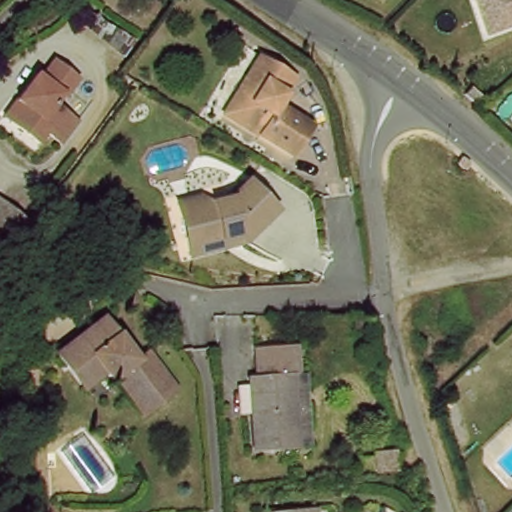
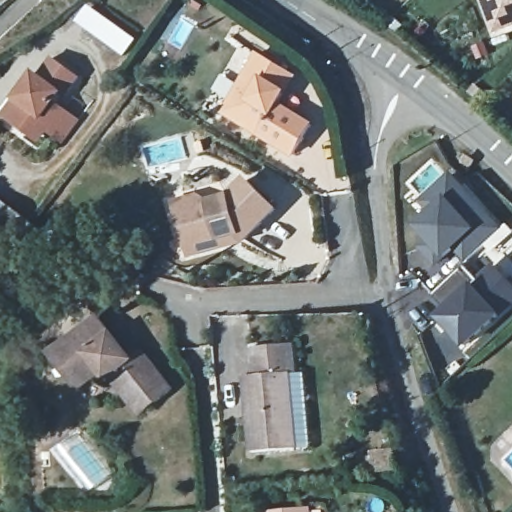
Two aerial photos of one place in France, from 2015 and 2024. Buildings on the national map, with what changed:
unchanged [(494,37),(481,2),(480,0),(512,0),(512,30),(494,37)]
unchanged [(128,32),(146,44),(136,60),(118,45),(91,25),(99,14),(128,32)]
unchanged [(261,59),(296,81),(279,109),(313,130),(294,160),(259,138),(261,135),(248,126),(246,129),(224,116),(261,59)]
unchanged [(14,110),(19,104),(28,93),(35,84),(39,88),(53,70),(77,89),(79,90),(64,109),(63,107),(60,106),(54,114),(56,116),(77,133),(59,155),(44,144),(36,154),(29,149),(8,132),(1,127),(14,110)]
unchanged [(474,91),(487,102),(479,109),(467,98),(474,91)]
new [(468,345),(444,317),(450,312),(437,296),(471,263),(458,248),(439,266),(428,253),(438,244),(422,227),(437,213),(413,186),(438,164),(452,180),(456,177),(504,232),(481,252),(512,285),(512,306),(468,345)]
unchanged [(279,215),(274,219),(246,246),(239,240),(224,243),(226,251),(191,259),(188,241),(179,207),(203,201),(213,207),(233,202),(251,186),(279,215)]
unchanged [(0,235),(0,196),(1,197),(27,218),(38,227),(39,227),(28,243),(10,238),(0,235)]
unchanged [(51,355),(60,347),(98,315),(132,357),(144,346),(177,382),(144,409),(115,374),(109,378),(103,370),(89,382),(79,390),(51,355)]
unchanged [(298,342),(300,371),(294,371),(302,447),(259,450),(252,376),(259,375),(256,345),(298,342)]
unchanged [(355,452),(366,451),(391,448),(392,464),(366,467),(355,468),(355,452)]
unchanged [(307,512),(291,512),(307,511),(307,512)]

